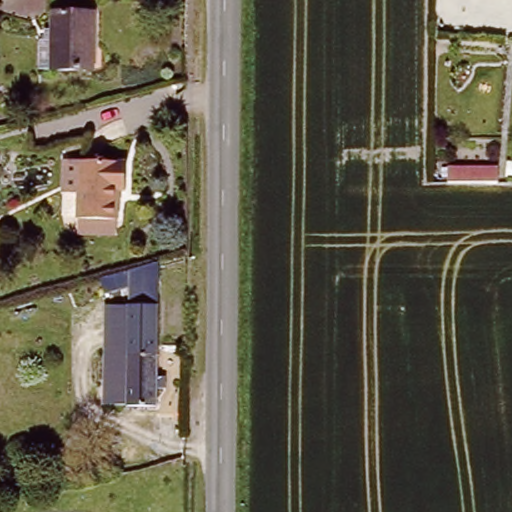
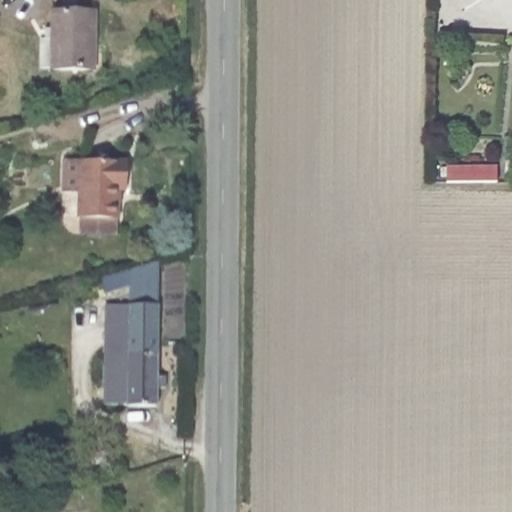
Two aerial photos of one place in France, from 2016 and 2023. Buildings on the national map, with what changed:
unchanged [(92,69),(40,66),(40,41),(46,41),(47,27),(53,27),(54,10),(94,12),(92,69)]
unchanged [(72,227),(72,214),(75,157),(125,159),(124,188),(112,187),(110,216),(110,229),(72,227)]
unchanged [(467,182),(447,181),(447,165),(468,166),(497,167),(497,183),(467,182)]
unchanged [(120,307),(125,307),(125,272),(154,265),(154,354),(120,353),(120,307)]
unchanged [(103,357),(120,358),(120,353),(154,354),(152,412),(117,412),(102,410),(103,357)]

